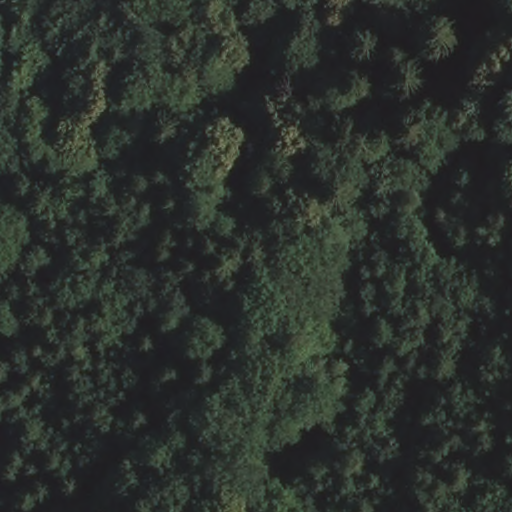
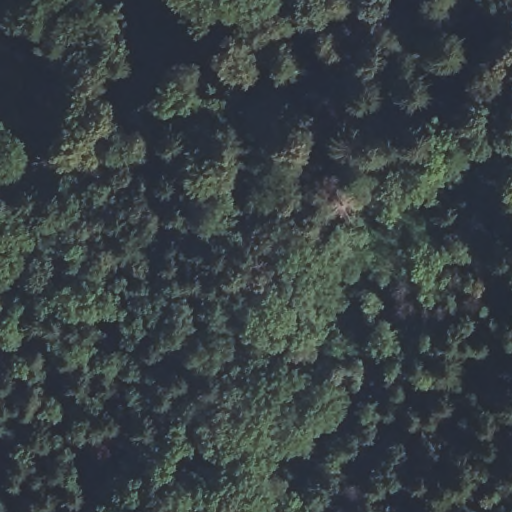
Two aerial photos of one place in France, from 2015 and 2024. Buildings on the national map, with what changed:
unchanged [(320,315),(342,323),(330,362),(305,353),(320,315)]

